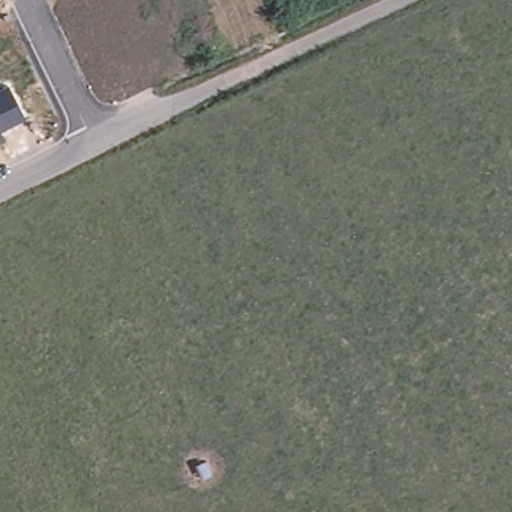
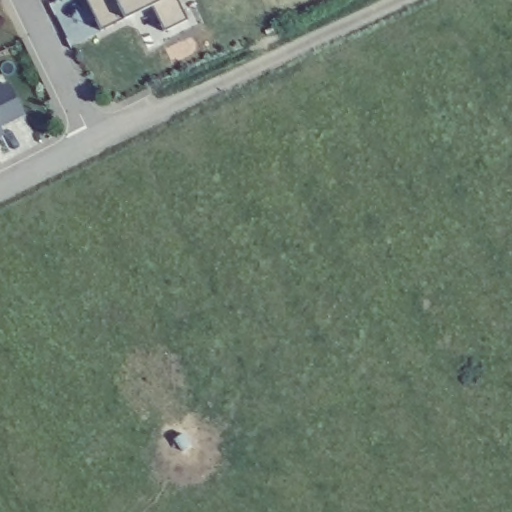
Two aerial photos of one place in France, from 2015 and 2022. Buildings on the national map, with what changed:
new [(177,0),(185,20),(162,30),(152,6),(124,19),(102,31),(87,0),(177,0)]
unchanged [(6,84),(24,116),(0,130),(0,87),(6,84)]
unchanged [(2,136),(0,138),(0,131),(2,136)]

